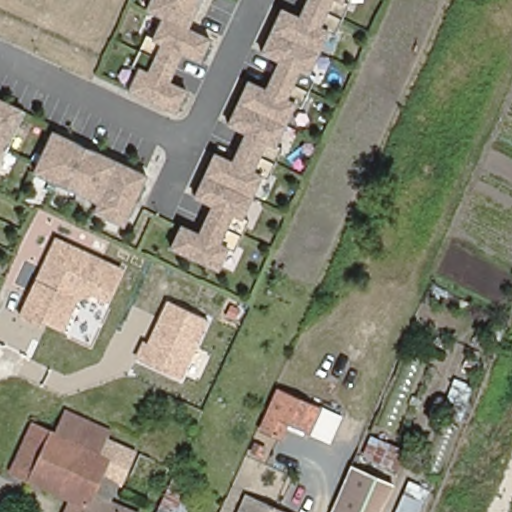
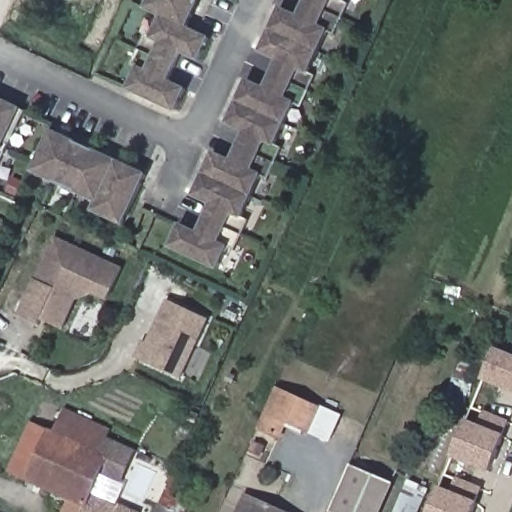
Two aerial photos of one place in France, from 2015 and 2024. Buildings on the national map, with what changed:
unchanged [(214,39),(203,62),(185,55),(173,82),(189,89),(177,114),(131,92),(140,73),(134,69),(148,38),(155,40),(164,20),(148,13),(153,0),(204,0),(191,29),(214,39)]
unchanged [(352,5),(340,34),(333,32),(313,73),(320,77),(307,106),(299,105),(279,148),(285,150),(272,179),(265,177),(247,217),(250,221),(239,249),(232,248),(222,270),(174,249),(184,227),(202,233),(214,204),(199,197),(219,156),(235,161),(247,134),(231,126),(252,82),(268,88),(281,61),(265,54),(285,11),(300,16),(308,0),(347,0),(346,1),(352,5)]
unchanged [(24,110),(0,158),(0,99),(24,110)]
unchanged [(150,176),(127,224),(97,213),(101,203),(37,174),(55,132),(150,176)]
unchanged [(108,302),(90,294),(77,300),(64,332),(44,323),(42,327),(18,316),(53,235),(124,267),(108,302)]
unchanged [(181,379),(133,359),(142,339),(147,342),(165,301),(208,320),(181,379)]
new [(512,388),(485,377),(498,346),(512,352),(512,388)]
unchanged [(309,401),(299,423),(280,415),(271,432),(257,426),(275,386),(309,401)]
new [(454,455),(468,421),(479,425),(485,411),(511,421),(491,470),(454,455)]
unchanged [(28,424),(49,434),(59,412),(107,431),(104,440),(129,451),(116,484),(97,475),(91,488),(108,497),(103,508),(113,512),(60,512),(66,499),(6,472),(28,424)]
unchanged [(171,476),(194,486),(184,512),(156,512),(171,476)]
unchanged [(349,476),(389,494),(381,512),(333,512),(336,505),(349,476)]
new [(474,512),(430,512),(441,488),(452,493),(458,478),(483,489),(474,512)]
unchanged [(252,499),(281,512),(246,512),(252,499)]

